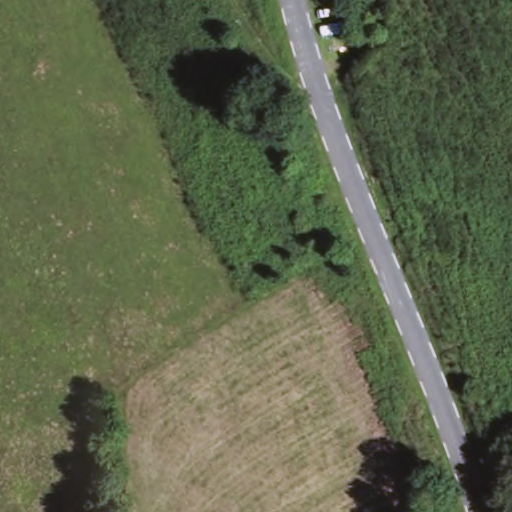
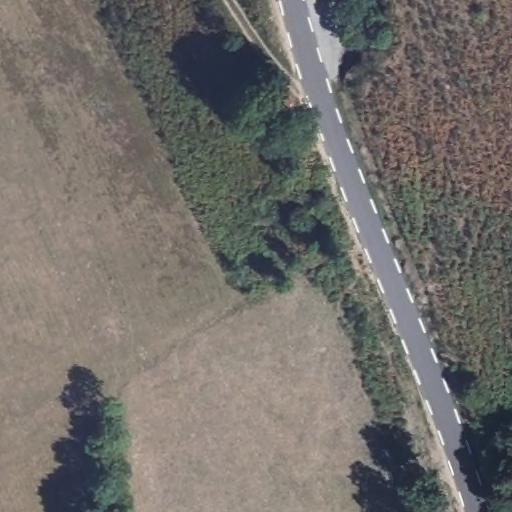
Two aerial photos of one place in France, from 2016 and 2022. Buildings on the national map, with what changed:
[]

